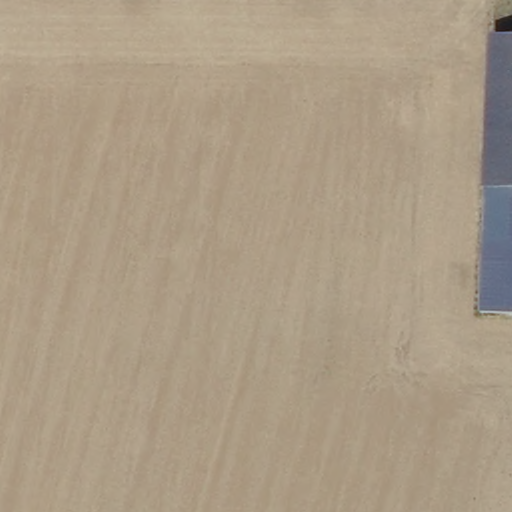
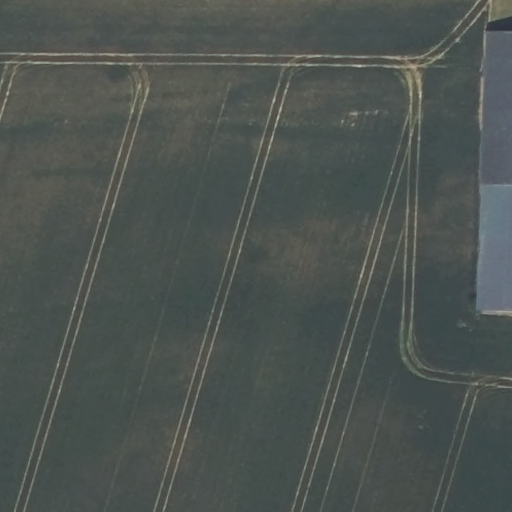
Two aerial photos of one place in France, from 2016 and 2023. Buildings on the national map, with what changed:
unchanged [(512,36),(512,186),(481,185),(485,35),(512,36)]
unchanged [(512,186),(512,315),(475,313),(476,287),(481,185),(512,186)]

